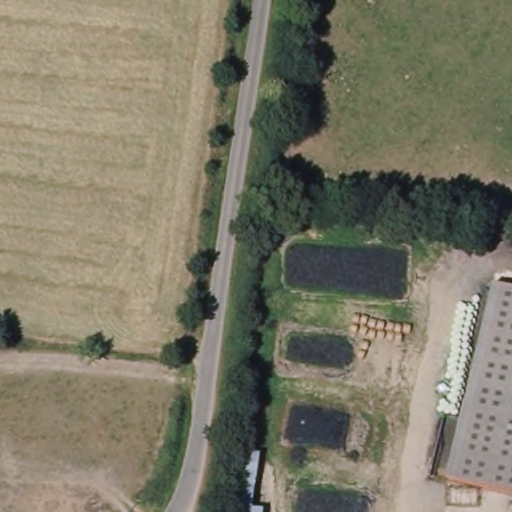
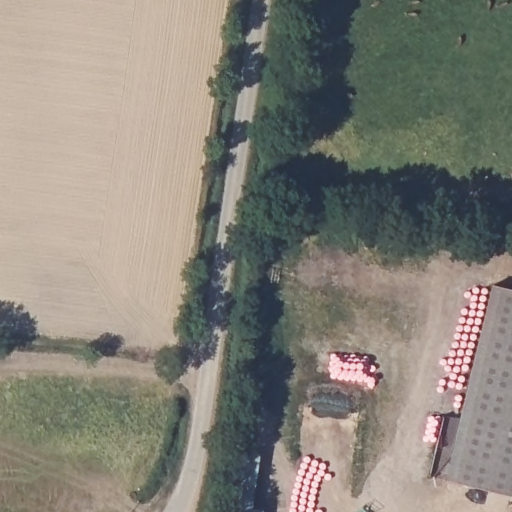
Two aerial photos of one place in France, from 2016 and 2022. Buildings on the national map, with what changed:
unchanged [(491,289),(512,294),(512,500),(444,484),(491,289)]
unchanged [(228,478),(232,448),(264,455),(260,481),(256,512),(223,512),(228,478)]

